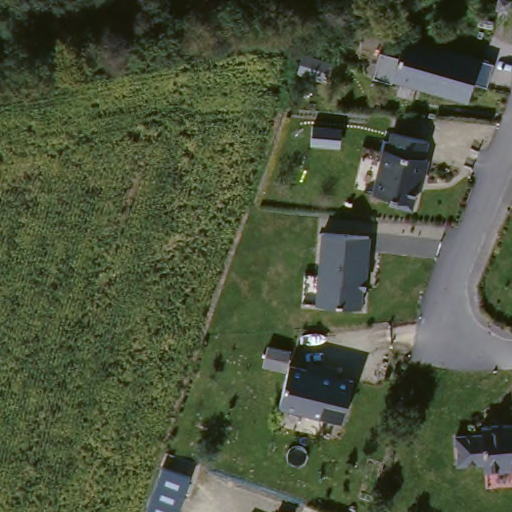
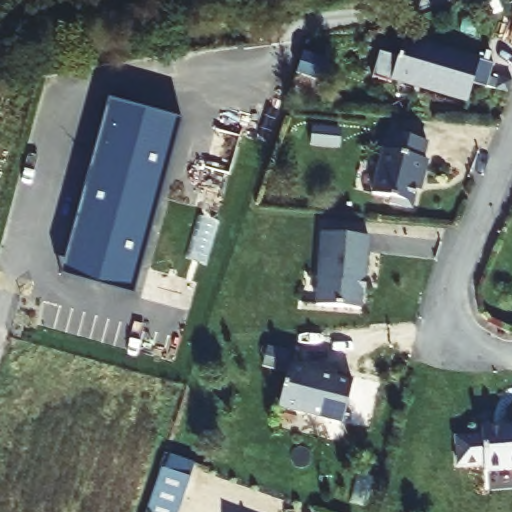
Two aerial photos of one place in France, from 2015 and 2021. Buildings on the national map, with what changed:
unchanged [(391,69),(402,33),(477,57),(463,98),(419,84),(390,74),(391,69)]
unchanged [(308,54),(332,63),(325,81),(302,73),(308,54)]
new [(182,119),(136,296),(61,275),(110,99),(182,119)]
unchanged [(426,155),(421,174),(417,173),(408,203),(387,197),(388,193),(371,188),(383,144),(381,144),(383,134),(390,135),(392,127),(427,137),(422,154),(426,155)]
new [(317,129),(343,131),(342,150),(315,147),(317,129)]
unchanged [(363,280),(360,308),(317,303),(325,230),(370,235),(366,278),(363,280)]
unchanged [(291,362),(320,369),(322,363),(339,368),(337,374),(355,379),(343,419),(279,402),(291,362)]
unchanged [(506,422),(512,421),(512,465),(511,465),(506,422)]
unchanged [(511,465),(485,468),(484,460),(457,463),(455,434),(482,432),(481,424),(506,422),(511,465)]
unchanged [(178,512),(147,512),(161,466),(191,477),(178,512)]

